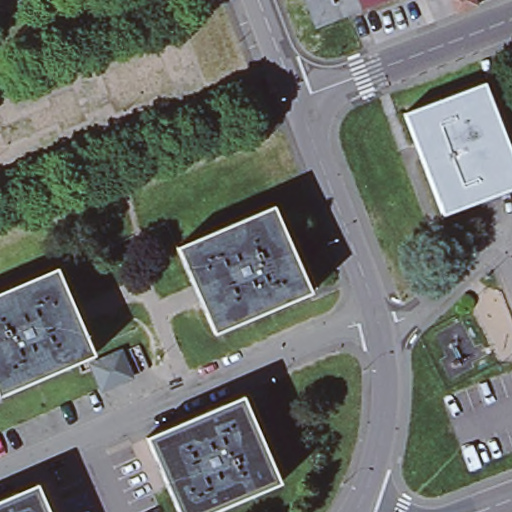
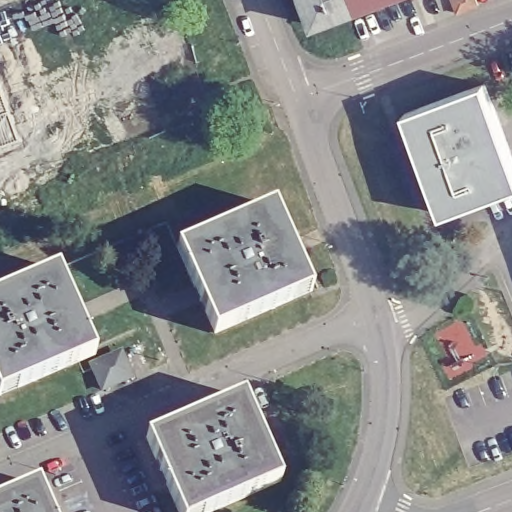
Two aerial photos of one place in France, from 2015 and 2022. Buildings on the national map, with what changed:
unchanged [(310,26),(300,0),(353,0),(356,8),(310,26)]
unchanged [(353,0),(378,0),(356,8),(353,0)]
unchanged [(486,85),(512,150),(512,190),(446,216),(407,115),(486,85)]
unchanged [(277,210),(310,294),(215,333),(180,247),(277,210)]
unchanged [(92,357),(0,395),(0,294),(57,271),(92,357)]
unchanged [(89,365),(120,349),(135,380),(101,395),(89,365)]
unchanged [(241,398),(277,480),(201,512),(180,512),(147,437),(241,398)]
unchanged [(0,502),(36,486),(47,512),(0,512),(0,502)]

